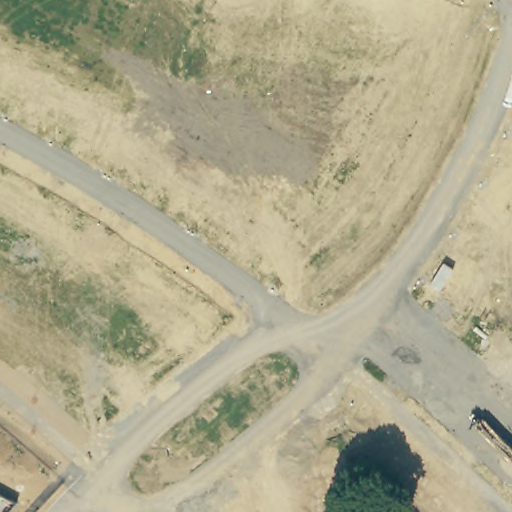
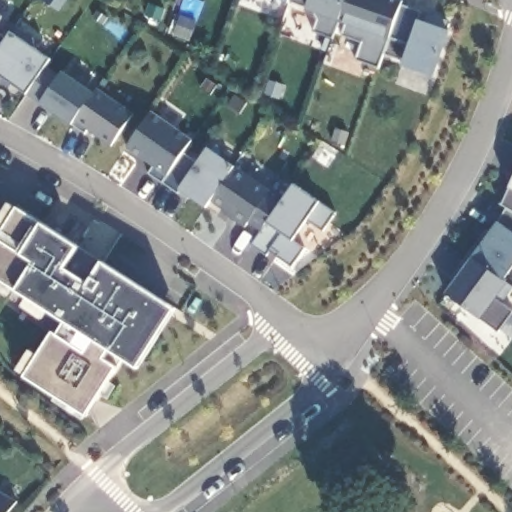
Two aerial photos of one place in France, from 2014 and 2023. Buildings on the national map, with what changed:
new [(287,1),(283,0),(288,0),(287,1)]
new [(339,20),(332,37),(313,32),(318,20),(305,9),(287,1),(288,0),(346,0),(339,20)]
new [(433,78),(400,67),(403,60),(384,53),(379,68),(356,59),(362,42),(341,35),(347,23),(339,20),(346,0),(401,0),(402,0),(400,6),(422,13),(420,20),(427,22),(428,14),(447,22),(446,30),(449,32),(433,78)]
new [(3,18),(0,23),(0,16),(3,18)]
new [(111,146),(86,129),(85,133),(72,126),(40,103),(24,94),(1,77),(0,78),(0,32),(8,37),(11,33),(15,25),(31,37),(35,50),(49,60),(47,63),(62,74),(64,73),(93,94),(97,89),(132,114),(111,146)]
new [(322,230),(306,218),(291,239),(304,248),(291,267),(268,251),(265,255),(251,244),(260,231),(249,222),(244,228),(221,213),(223,210),(209,200),(204,207),(182,192),(177,195),(148,173),(154,167),(126,147),(151,112),(190,140),(181,153),(197,162),(208,148),(234,167),(283,201),(294,184),(318,201),(335,212),(322,230)]
new [(507,208),(501,204),(510,188),(512,184),(512,269),(503,281),(507,283),(480,319),(445,294),(497,222),(507,208)]
new [(85,416),(23,376),(52,331),(57,334),(67,322),(16,290),(0,279),(0,232),(16,207),(42,224),(174,309),(137,368),(108,349),(102,359),(116,367),(85,416)]
unchanged [(0,512),(0,493),(16,501),(9,512),(0,512)]

